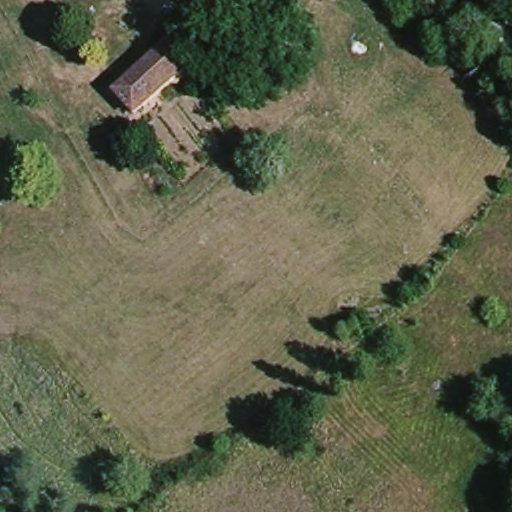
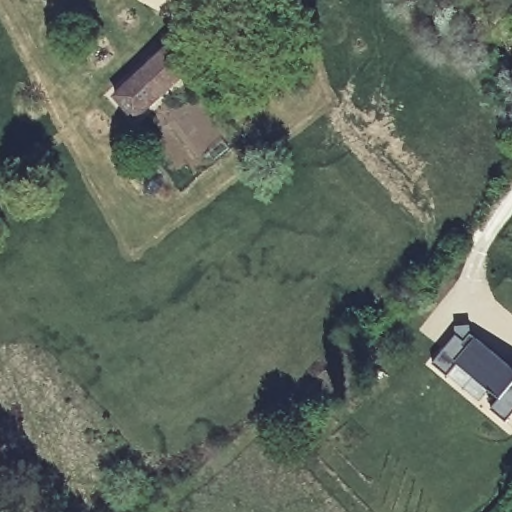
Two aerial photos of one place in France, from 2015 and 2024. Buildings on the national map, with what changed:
unchanged [(170,47),(191,70),(136,120),(115,98),(170,47)]
new [(470,327),(470,335),(512,369),(512,416),(506,423),(490,410),(499,400),(457,365),(447,377),(432,365),(456,335),(456,327),(470,327)]

